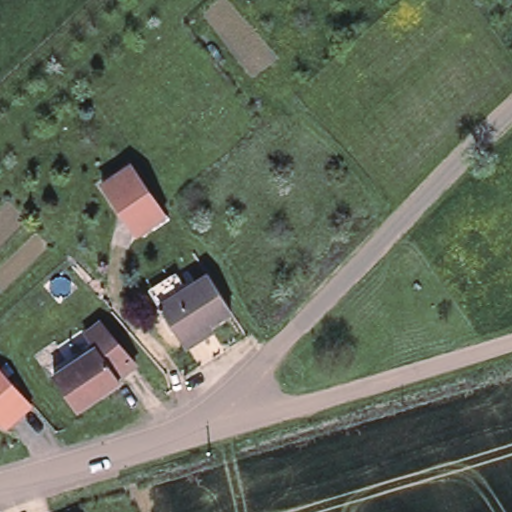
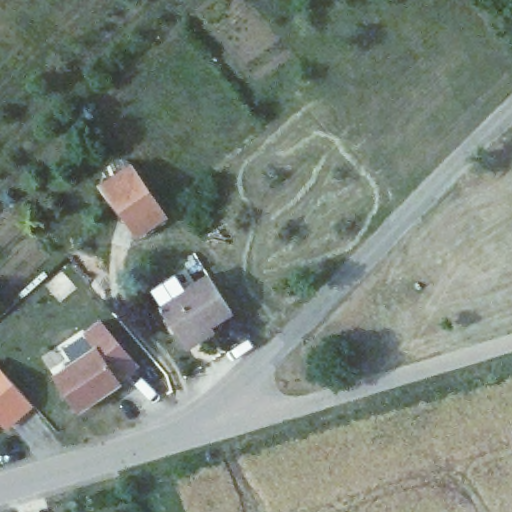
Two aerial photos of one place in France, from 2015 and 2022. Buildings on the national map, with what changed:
unchanged [(103,182),(132,163),(146,184),(165,212),(166,213),(136,232),(120,207),(103,182)]
unchanged [(188,353),(185,347),(161,312),(151,299),(186,276),(194,288),(207,280),(231,314),(209,329),(213,335),(188,353)]
unchanged [(57,374),(54,370),(80,351),(93,342),(92,340),(83,328),(98,317),(107,326),(136,358),(118,372),(121,377),(105,388),(99,392),(79,406),(57,374)]
unchanged [(12,376),(35,403),(9,425),(0,415),(0,362),(12,376)]

